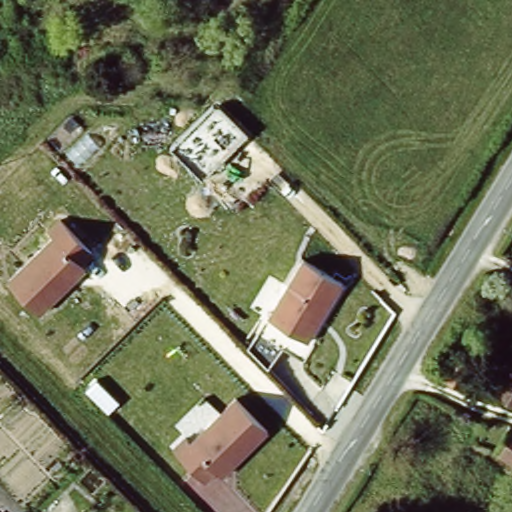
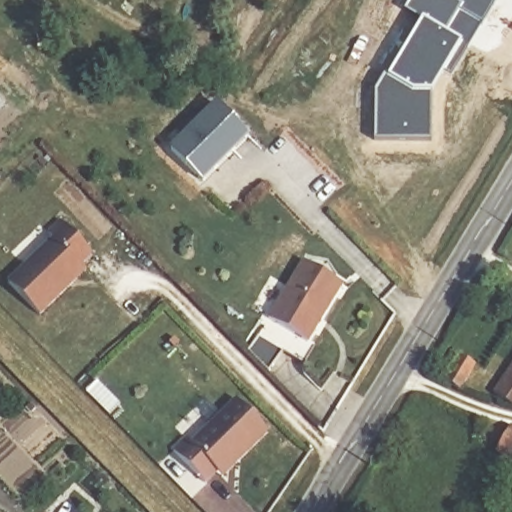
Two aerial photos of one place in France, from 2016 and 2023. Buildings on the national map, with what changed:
new [(385,74),(389,76),(424,21),(407,10),(413,0),(497,0),(480,26),(450,76),(444,72),(432,91),(431,140),(375,139),(375,89),(385,74)]
new [(204,181),(170,148),(217,101),(250,136),(204,181)]
unchanged [(52,237),(48,233),(59,221),(93,256),(82,267),(87,271),(40,316),(6,282),(52,237)]
unchanged [(308,342),(267,318),(301,260),(342,283),(308,342)]
unchanged [(459,351),(472,360),(456,387),(442,378),(459,351)]
unchanged [(512,377),(512,408),(498,398),(512,377)]
unchanged [(269,431),(222,478),(217,473),(206,484),(173,451),(187,438),(191,442),(235,398),(269,431)]
unchanged [(512,435),(512,464),(499,455),(512,435)]

